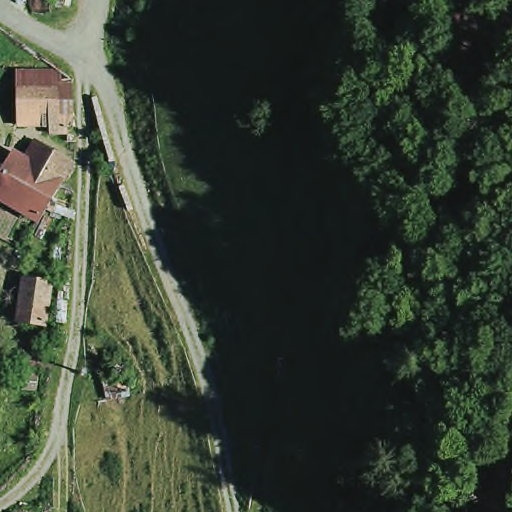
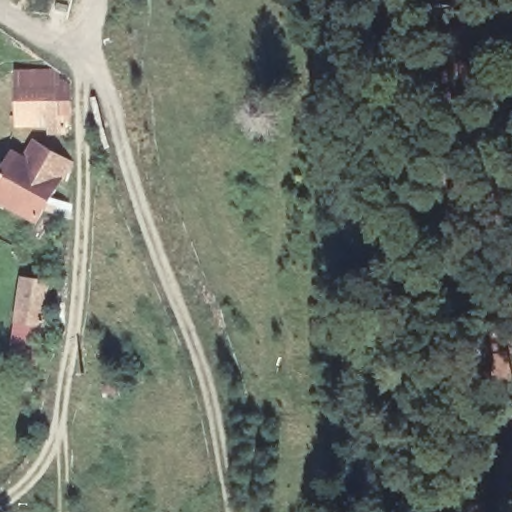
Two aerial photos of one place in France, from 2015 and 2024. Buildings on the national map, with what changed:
unchanged [(45,110),(39,110),(38,123),(12,123),(12,111),(12,87),(12,70),(52,69),(55,71),(56,87),(57,110),(62,110),(62,132),(46,133),(45,110)]
unchanged [(0,174),(10,157),(22,164),(32,146),(68,167),(58,185),(35,224),(0,204),(0,174)]
unchanged [(20,328),(25,288),(50,292),(45,331),(20,328)]

